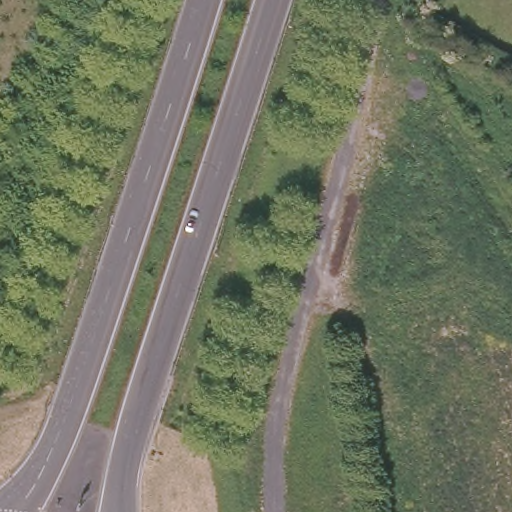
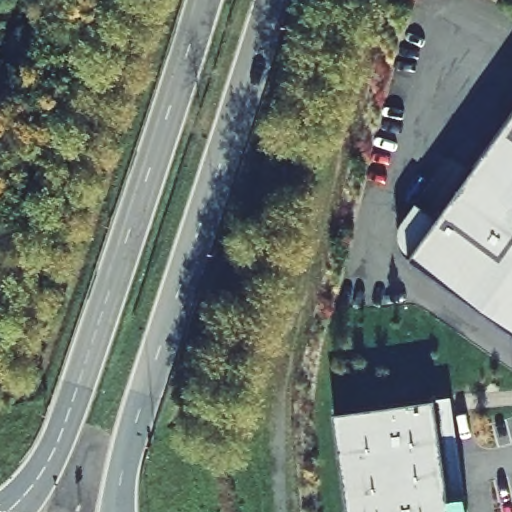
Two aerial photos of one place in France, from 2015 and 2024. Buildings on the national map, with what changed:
new [(512,108),(512,332),(405,258),(512,108)]
new [(437,215),(408,255),(403,250),(398,241),(397,237),(397,226),(400,217),(414,198),(437,215)]
new [(449,392),(465,512),(450,512),(434,394),(449,392)]
new [(448,512),(345,512),(330,414),(434,398),(448,512)]

